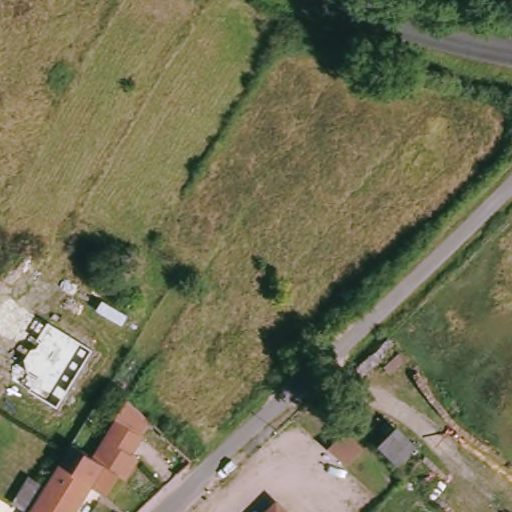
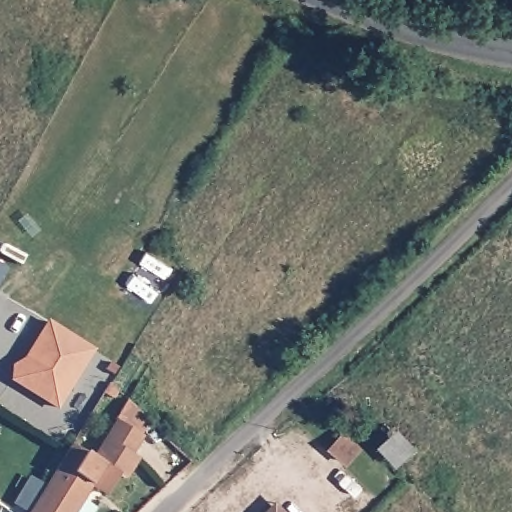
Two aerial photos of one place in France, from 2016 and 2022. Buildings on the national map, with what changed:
new [(12,365),(24,359),(47,319),(95,350),(57,409),(11,381),(12,365)]
unchanged [(71,446),(94,459),(118,422),(142,437),(131,455),(138,459),(125,480),(119,476),(107,495),(102,492),(92,485),(73,512),(29,512),(39,496),(71,446)]
unchanged [(347,440),(366,455),(354,470),(335,455),(347,440)]
unchanged [(294,512),(271,512),(279,501),(294,512)]

